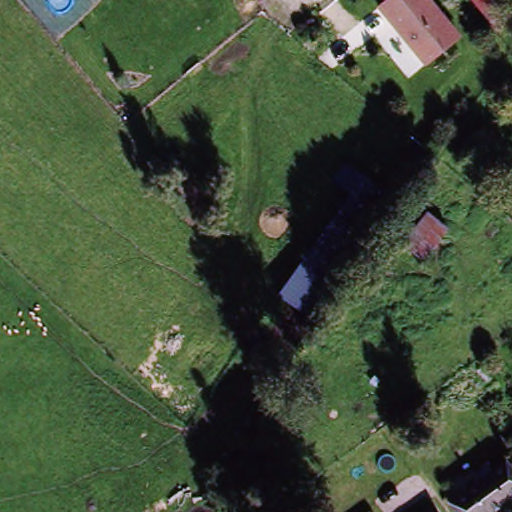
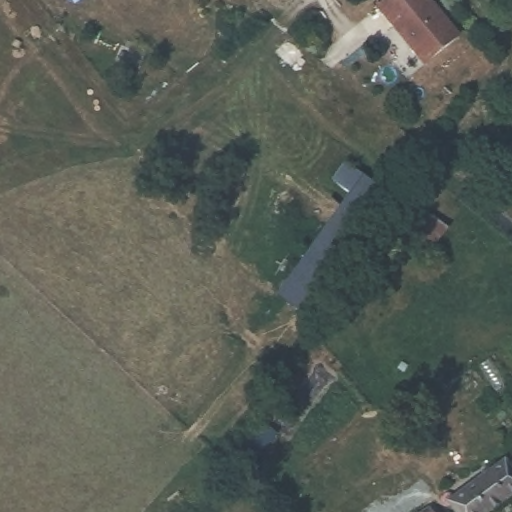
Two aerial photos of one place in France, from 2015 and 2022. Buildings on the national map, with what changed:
unchanged [(394,0),(437,0),(466,37),(430,66),(384,8),(394,0)]
unchanged [(282,295),(352,195),(378,215),(312,317),(282,295)]
unchanged [(422,216),(447,236),(427,263),(402,244),(422,216)]
unchanged [(492,512),(456,512),(448,503),(505,457),(512,464),(512,495),(492,512)]
unchanged [(432,512),(421,512),(429,506),(432,512)]

